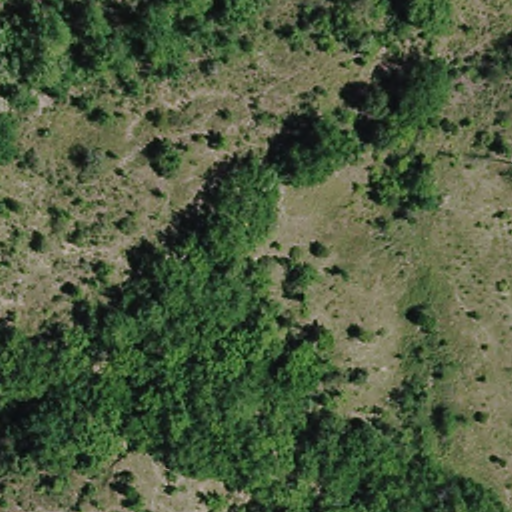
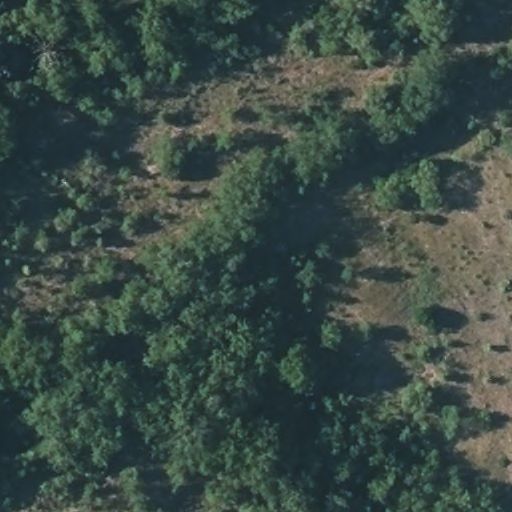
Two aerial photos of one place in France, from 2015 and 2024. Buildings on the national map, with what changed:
[]

